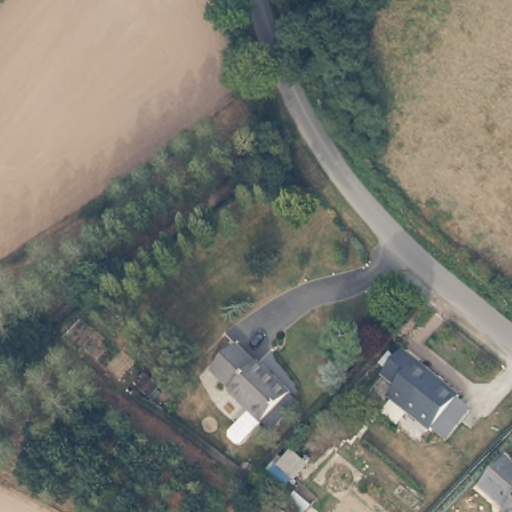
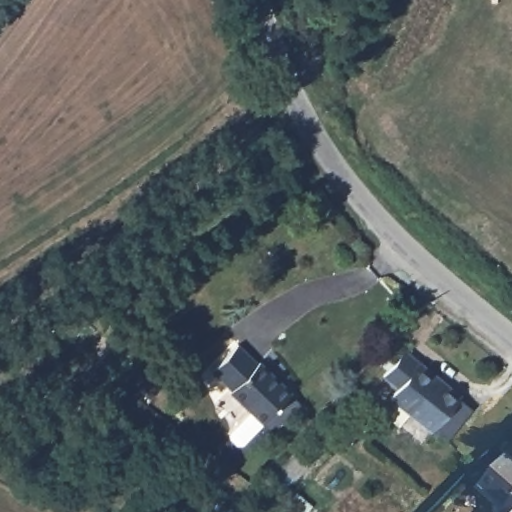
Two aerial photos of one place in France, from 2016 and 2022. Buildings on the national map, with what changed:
unchanged [(231,439),(225,433),(225,428),(244,408),(223,388),(225,386),(205,367),(232,339),(252,358),(253,356),(286,388),(284,389),(294,398),(266,426),(257,418),(256,419),(236,439),(231,439)]
unchanged [(436,430),(422,419),(420,421),(378,387),(387,377),(372,365),(393,340),(423,365),(449,386),(447,388),(461,399),(436,430)]
unchanged [(512,512),(498,512),(500,509),(474,486),(500,456),(512,467),(512,512)]

